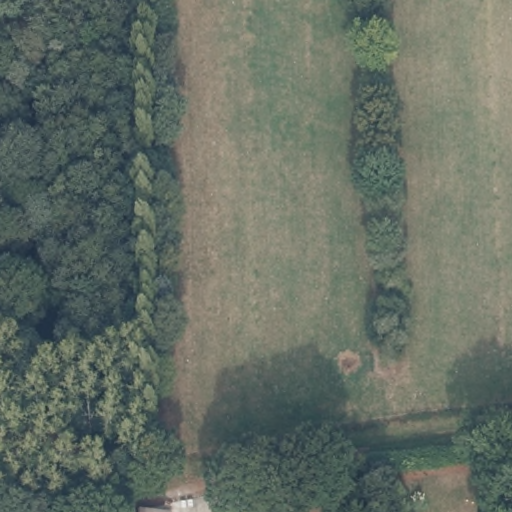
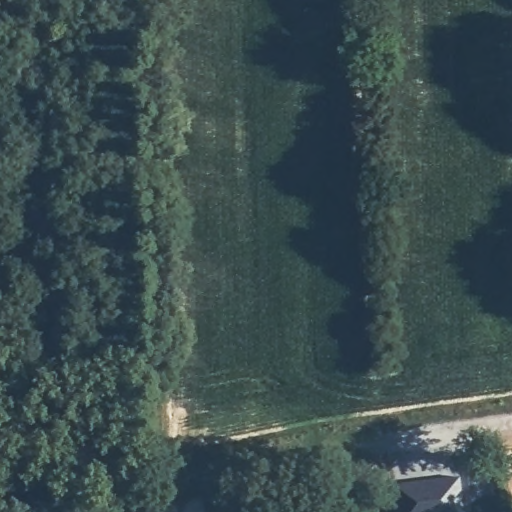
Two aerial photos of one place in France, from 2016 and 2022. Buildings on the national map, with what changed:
new [(460,477),(465,512),(395,512),(392,484),(460,477)]
unchanged [(178,512),(154,512),(179,507),(178,512)]

